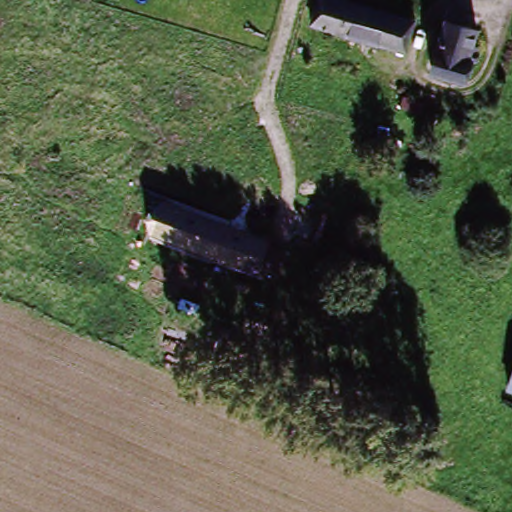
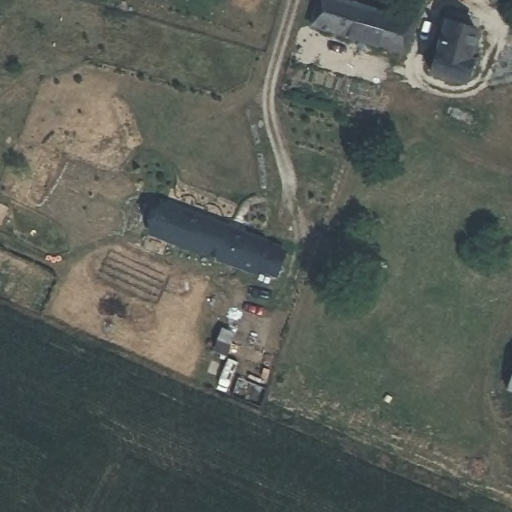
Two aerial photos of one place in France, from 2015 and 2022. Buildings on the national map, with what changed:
unchanged [(401,57),(310,29),(319,0),(330,0),(387,17),(409,26),(401,57)]
unchanged [(444,19),(471,30),(468,46),(477,50),(473,62),(464,62),(457,81),(425,72),(444,19)]
unchanged [(156,236),(168,206),(269,243),(257,274),(156,236)]
unchanged [(512,387),(510,386),(512,380),(512,387)]

